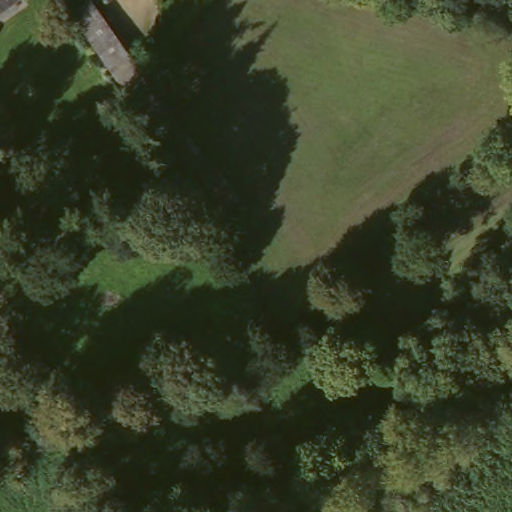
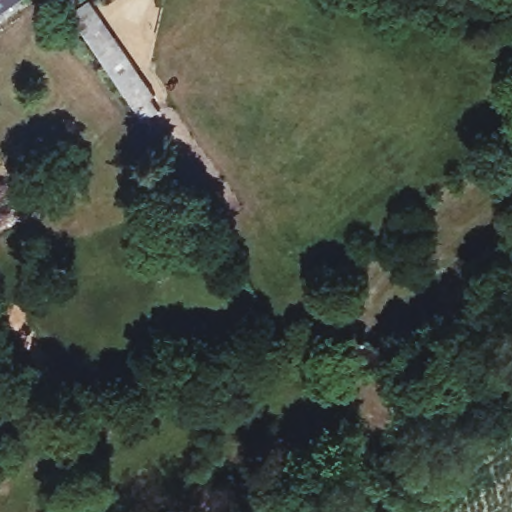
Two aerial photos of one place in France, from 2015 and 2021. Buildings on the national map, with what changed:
unchanged [(0,0),(21,0),(0,16),(0,0)]
unchanged [(140,105),(76,13),(74,11),(91,0),(95,0),(158,92),(140,105)]

